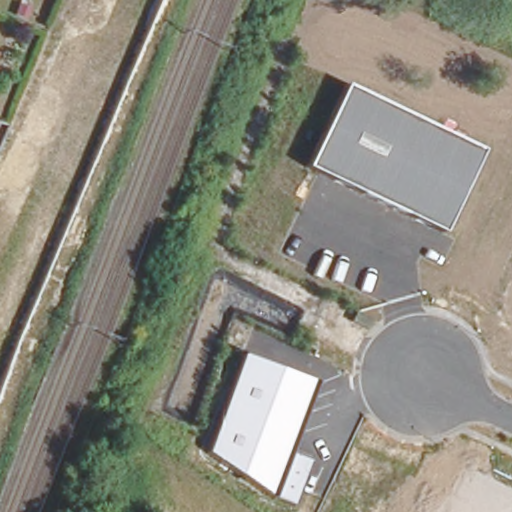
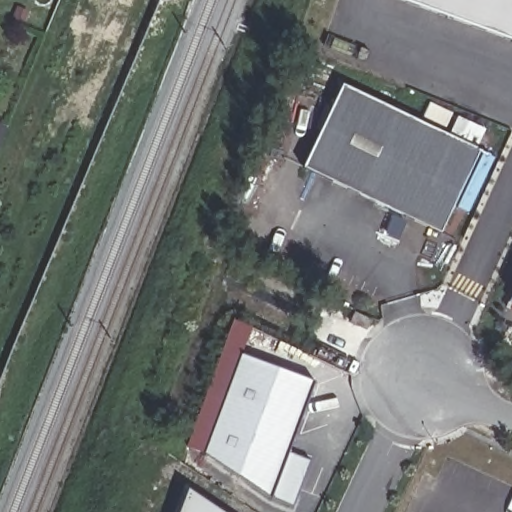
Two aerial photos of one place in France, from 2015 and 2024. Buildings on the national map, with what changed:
new [(399,0),(512,0),(512,41),(399,0)]
unchanged [(31,25),(14,18),(19,4),(36,10),(31,25)]
unchanged [(442,232),(306,169),(345,86),(482,150),(442,232)]
unchanged [(294,510),(207,453),(245,356),(315,382),(288,452),(312,460),(294,510)]
new [(192,495),(218,512),(185,512),(192,495)]

